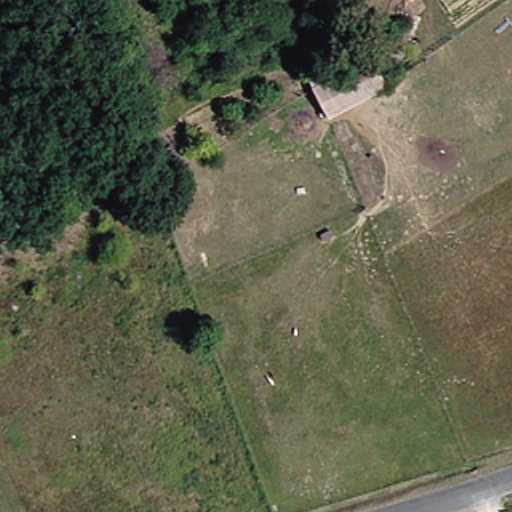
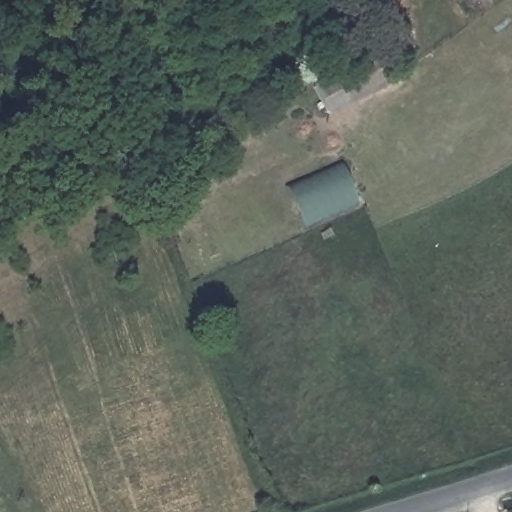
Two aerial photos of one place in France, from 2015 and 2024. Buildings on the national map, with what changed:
unchanged [(321,89),(378,57),(395,86),(336,118),(321,89)]
new [(355,197),(298,218),(287,190),(343,169),(355,197)]

